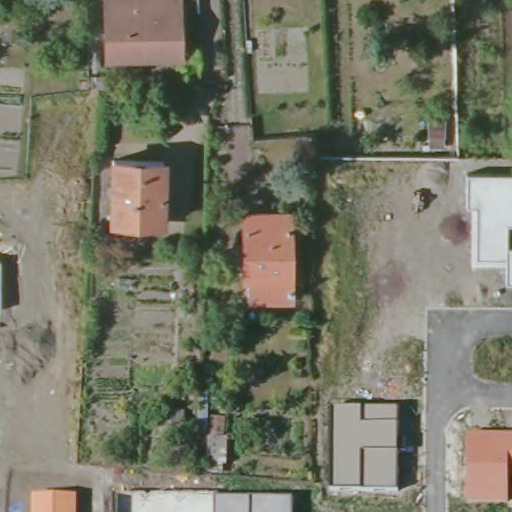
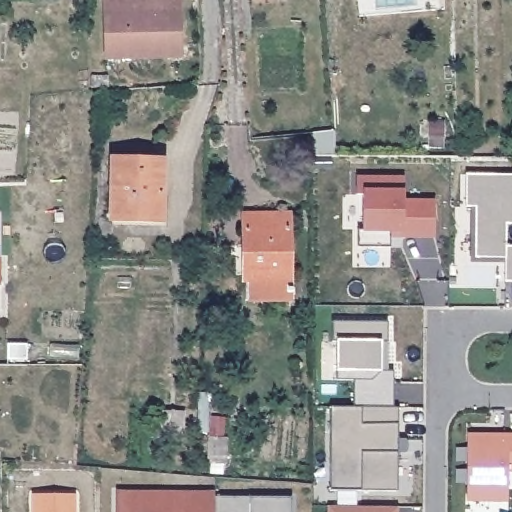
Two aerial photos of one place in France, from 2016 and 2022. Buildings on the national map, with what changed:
unchanged [(180,56),(105,58),(104,0),(179,0),(179,10),(180,56)]
unchanged [(112,221),(113,160),(162,161),(162,221),(112,221)]
unchanged [(470,206),(467,206),(468,175),(512,175),(512,281),(506,282),(506,262),(470,263),(470,206)]
new [(355,179),(403,180),(403,202),(433,202),(433,237),(402,237),(402,232),(389,232),(389,249),(356,249),(356,232),(363,232),(363,197),(355,197),(355,179)]
unchanged [(249,279),(244,279),(243,215),(289,215),(289,217),(296,217),(296,229),(289,229),(289,298),(261,298),(249,299),(249,279)]
new [(389,322),(389,371),(394,372),(394,406),(363,405),(355,405),(354,380),(338,379),(337,372),(337,340),(334,340),(334,321),(389,322)]
unchanged [(361,488),(331,488),(332,405),(363,405),(398,406),(398,422),(397,449),(397,489),(361,488)]
unchanged [(211,420),(211,407),(232,407),(232,421),(211,420)]
unchanged [(161,439),(161,413),(182,415),(181,440),(161,439)]
unchanged [(512,434),(512,473),(509,473),(509,502),(468,502),(469,432),(512,434)]
unchanged [(206,462),(208,436),(225,437),(224,462),(206,462)]
new [(356,507),(399,506),(399,512),(327,512),(328,506),(336,506),(338,488),(356,488),(356,507)]
unchanged [(118,493),(215,493),(216,498),(215,512),(118,512),(118,493)]
unchanged [(33,495),(76,496),(76,512),(32,512),(33,495)]
unchanged [(216,498),(291,498),(291,512),(215,512),(216,498)]

